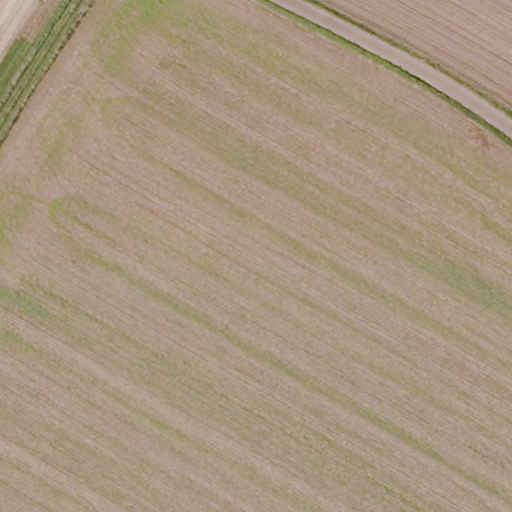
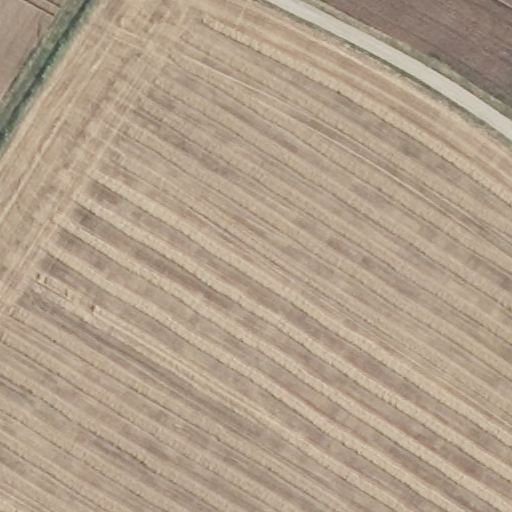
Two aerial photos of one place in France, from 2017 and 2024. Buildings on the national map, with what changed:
[]

